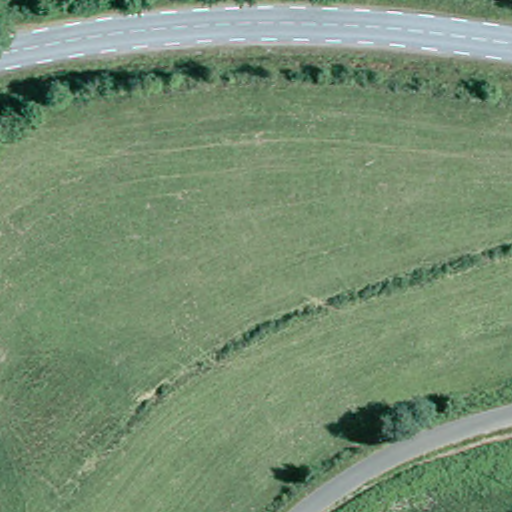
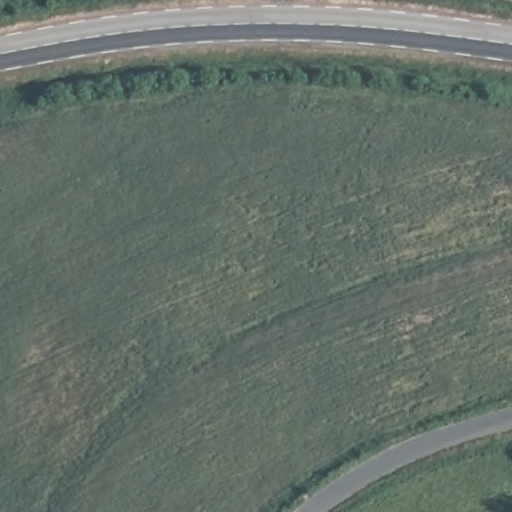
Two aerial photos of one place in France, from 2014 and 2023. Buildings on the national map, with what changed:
[]

